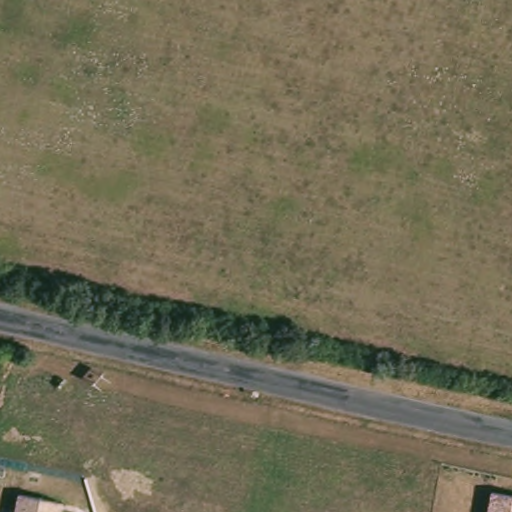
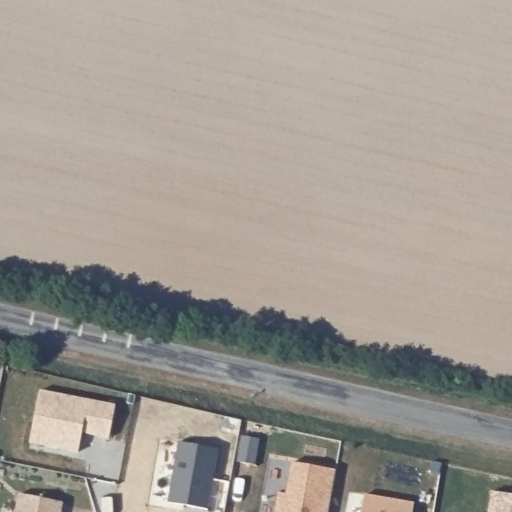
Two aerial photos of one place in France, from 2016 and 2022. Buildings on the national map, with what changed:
new [(39,390),(115,405),(108,438),(81,433),(77,453),(44,446),(28,443),(32,423),(39,390)]
new [(180,442),(220,450),(207,511),(168,503),(180,442)]
new [(285,494),(291,463),(334,471),(328,512),(275,512),(278,493),(285,494)]
unchanged [(512,495),(512,512),(488,512),(492,492),(512,495)]
unchanged [(16,512),(19,494),(63,502),(62,512),(16,512)]
new [(414,503),(413,512),(362,512),(365,495),(414,503)]

